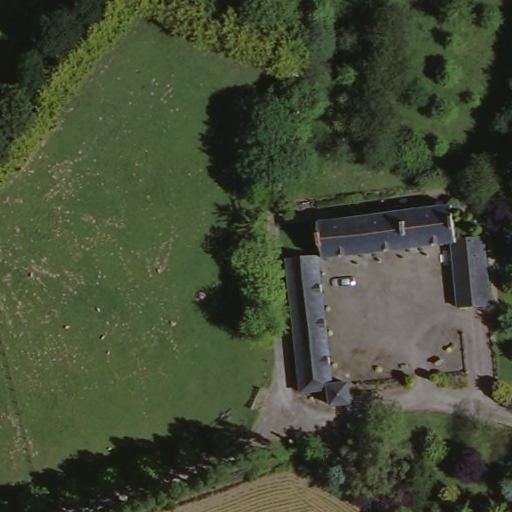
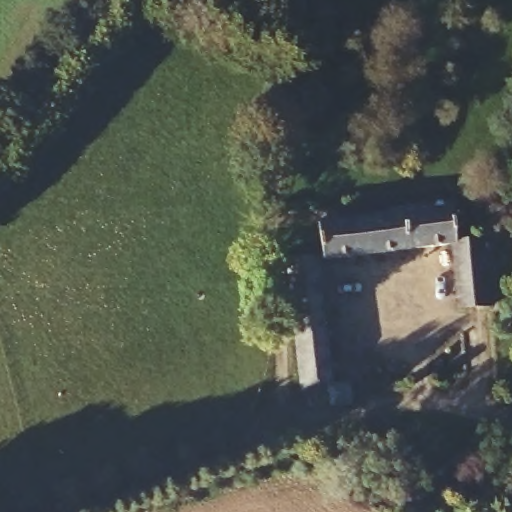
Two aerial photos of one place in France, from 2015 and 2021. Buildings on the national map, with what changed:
unchanged [(326,251),(323,213),(454,199),(455,237),(455,239),(326,251)]
unchanged [(455,239),(455,237),(486,234),(491,305),(458,308),(455,239)]
unchanged [(350,397),(332,398),(330,376),(302,379),(302,373),(290,254),(289,253),(320,249),(334,375),(349,374),(350,397)]

